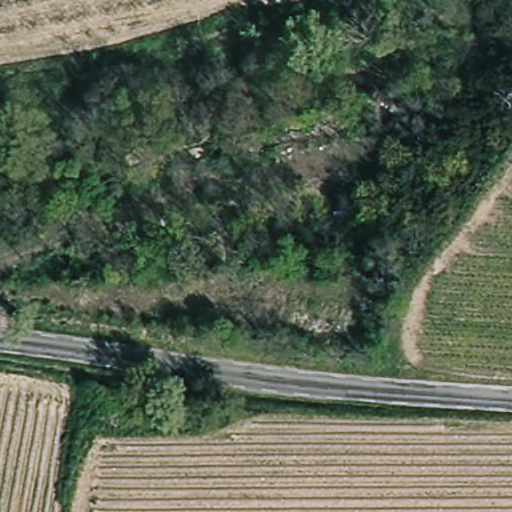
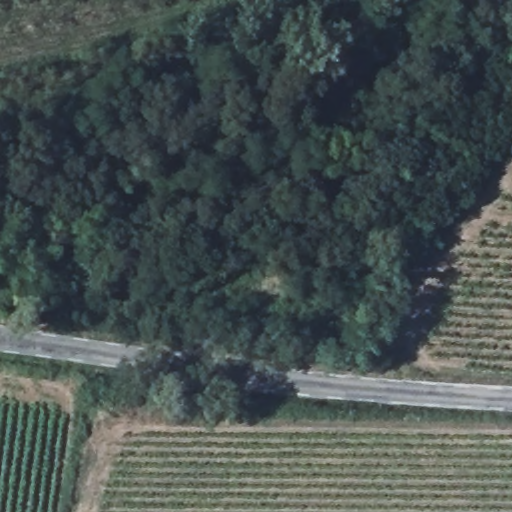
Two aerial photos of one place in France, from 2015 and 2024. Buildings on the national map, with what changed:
[]

